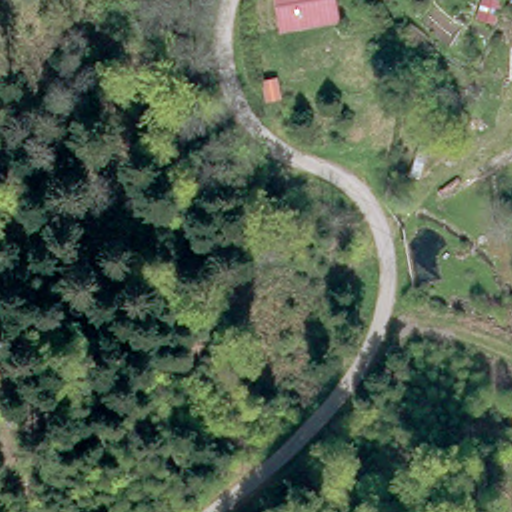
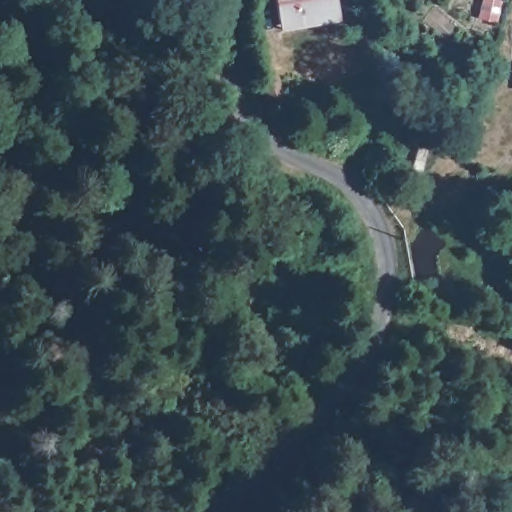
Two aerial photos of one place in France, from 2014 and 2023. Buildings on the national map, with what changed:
unchanged [(286,37),(281,27),(268,0),(333,0),(338,10),(286,37)]

